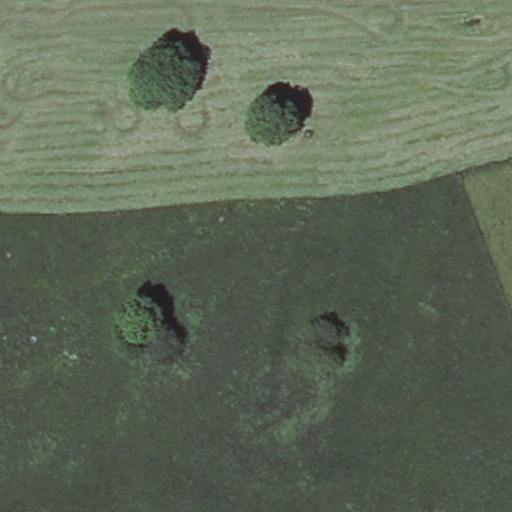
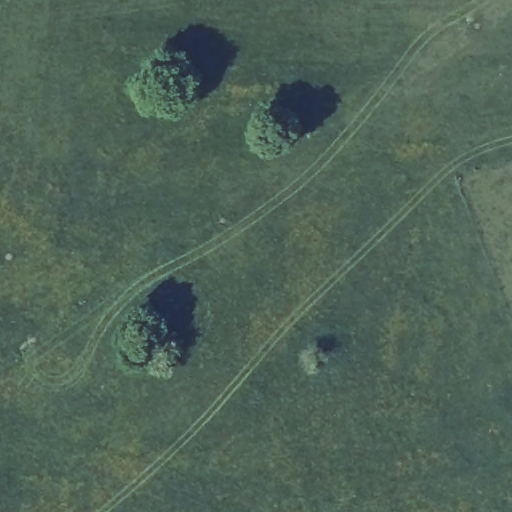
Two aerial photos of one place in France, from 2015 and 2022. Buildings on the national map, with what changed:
[]

